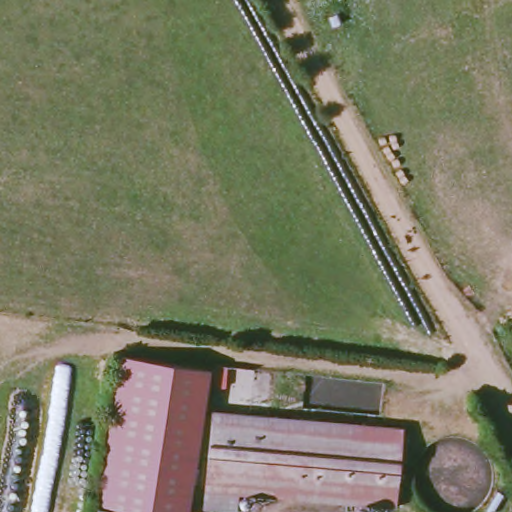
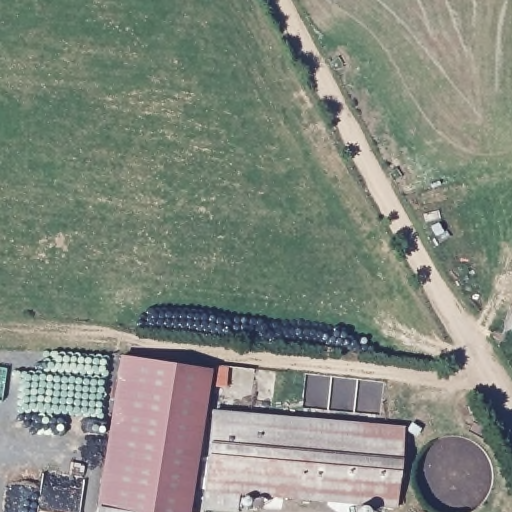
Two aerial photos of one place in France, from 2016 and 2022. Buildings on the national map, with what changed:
unchanged [(120,358),(209,372),(187,512),(129,512),(97,507),(120,358)]
unchanged [(227,365),(225,385),(214,384),(216,364),(227,365)]
unchanged [(236,512),(203,509),(204,491),(211,412),(403,428),(396,507),(238,494),(236,512)]
unchanged [(129,512),(96,512),(97,507),(129,512)]

